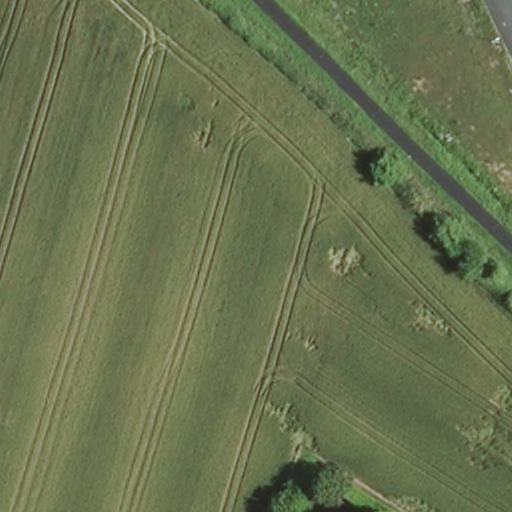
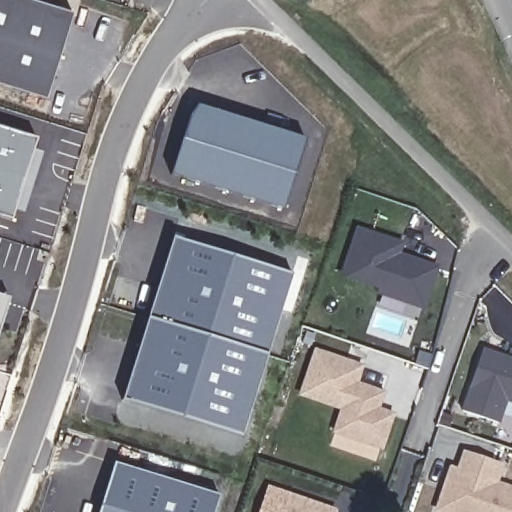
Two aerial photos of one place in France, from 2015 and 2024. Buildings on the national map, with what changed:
new [(49,101),(0,86),(0,0),(28,0),(76,15),(49,101)]
new [(191,118),(199,107),(309,142),(286,212),(173,177),(191,118)]
new [(0,129),(36,140),(11,221),(0,217),(0,129)]
new [(359,230),(400,244),(396,257),(435,271),(422,309),(382,293),(384,288),(344,273),(359,230)]
new [(175,237),(295,274),(269,356),(149,318),(175,237)]
new [(0,335),(0,299),(11,302),(0,335)]
new [(149,318),(269,356),(244,437),(124,399),(149,318)]
new [(483,351),(512,361),(512,403),(507,402),(500,423),(463,410),(483,351)]
new [(317,354),(363,368),(357,386),(384,395),(378,411),(394,417),(383,448),(338,433),(346,409),(304,395),(317,354)]
new [(453,470),(460,472),(467,455),(503,467),(497,485),(512,490),(512,512),(443,512),(439,511),(447,489),(453,470)]
new [(116,463),(221,496),(216,512),(100,512),(116,463)]
new [(271,491),(335,512),(263,512),(271,491)]

